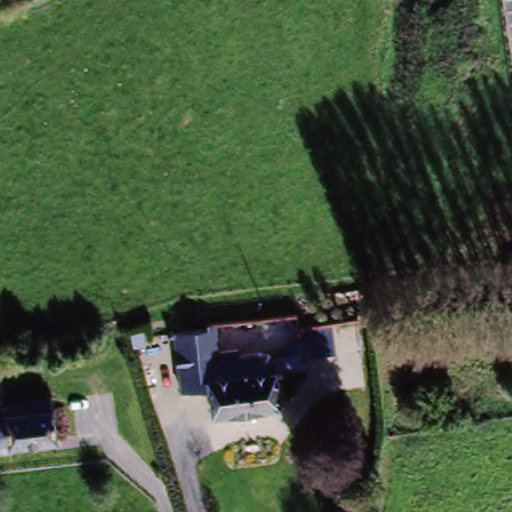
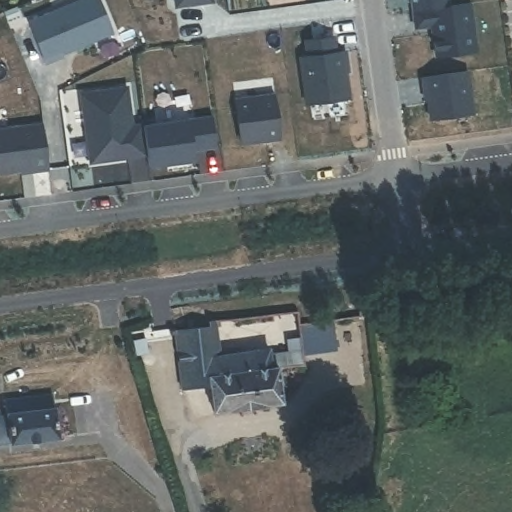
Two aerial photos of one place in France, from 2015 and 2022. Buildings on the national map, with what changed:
new [(97,0),(111,34),(61,55),(61,58),(46,64),(30,25),(90,0),(97,0)]
new [(176,9),(175,0),(213,0),(214,3),(176,9)]
new [(412,11),(411,0),(447,0),(447,7),(412,11)]
new [(476,51),(436,57),(431,26),(415,29),(412,11),(470,3),(476,51)]
new [(305,100),(298,54),(305,53),(303,38),(330,34),(332,50),(342,48),(345,67),(343,68),(346,94),(305,100)]
new [(467,71),(475,115),(432,121),(425,77),(467,71)]
new [(147,159),(91,167),(82,98),(128,92),(132,131),(144,130),(144,132),(147,159)]
new [(236,105),(276,100),(281,143),(242,149),(236,105)]
new [(214,122),(217,152),(192,155),(194,165),(149,171),(144,132),(214,122)]
new [(50,174),(33,176),(32,173),(0,177),(0,136),(44,130),(50,174)]
unchanged [(179,393),(171,333),(194,332),(194,326),(214,326),(217,347),(239,346),(240,354),(270,351),(272,370),(276,371),(280,406),(213,414),(210,389),(179,393)]
unchanged [(0,442),(0,416),(15,413),(14,399),(47,395),(49,408),(64,407),(67,438),(19,442),(1,443),(0,442)]

